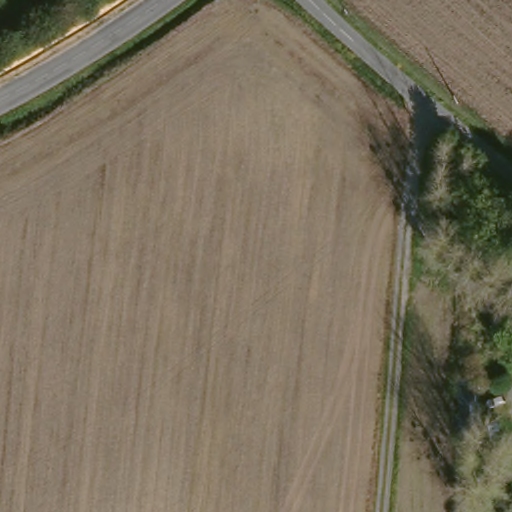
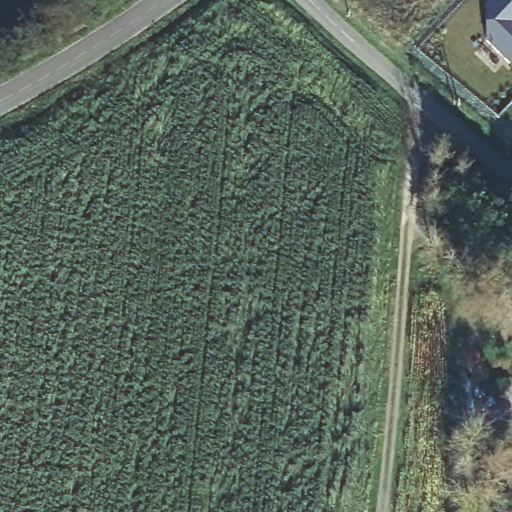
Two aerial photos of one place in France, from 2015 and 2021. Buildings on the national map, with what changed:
new [(486,6),(492,0),(512,0),(512,70),(486,45),(486,6)]
unchanged [(461,447),(462,386),(483,386),(482,446),(461,447)]

